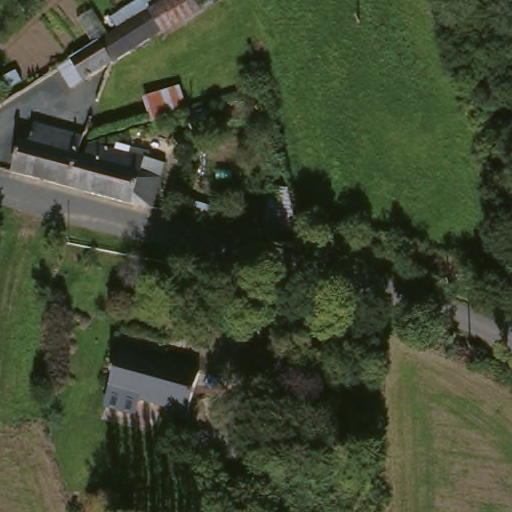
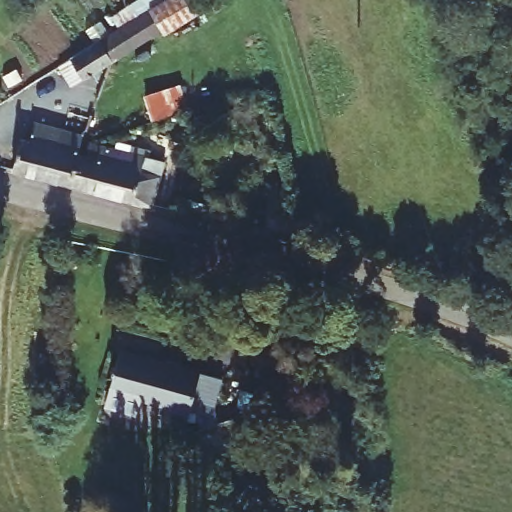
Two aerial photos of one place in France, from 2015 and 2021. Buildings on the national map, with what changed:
unchanged [(170,30),(167,25),(156,5),(163,0),(206,0),(209,7),(170,30)]
unchanged [(106,34),(141,13),(156,5),(167,25),(116,55),(106,34)]
unchanged [(72,81),(61,61),(106,34),(116,55),(72,81)]
unchanged [(168,110),(148,115),(141,95),(174,85),(183,106),(168,110)]
unchanged [(39,181),(9,175),(19,137),(27,140),(33,122),(78,132),(73,151),(79,152),(85,145),(109,150),(97,195),(39,181)]
unchanged [(97,195),(109,150),(159,161),(148,206),(97,195)]
unchanged [(268,222),(265,187),(293,189),(304,228),(268,222)]
unchanged [(156,407),(158,402),(101,386),(113,347),(189,367),(176,413),(156,407)]
unchanged [(194,424),(186,400),(204,393),(214,417),(194,424)]

